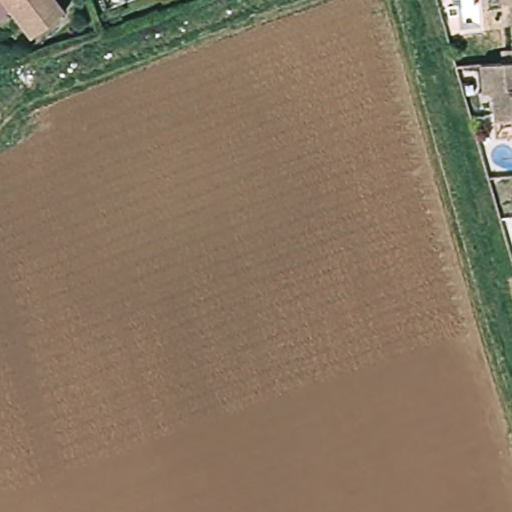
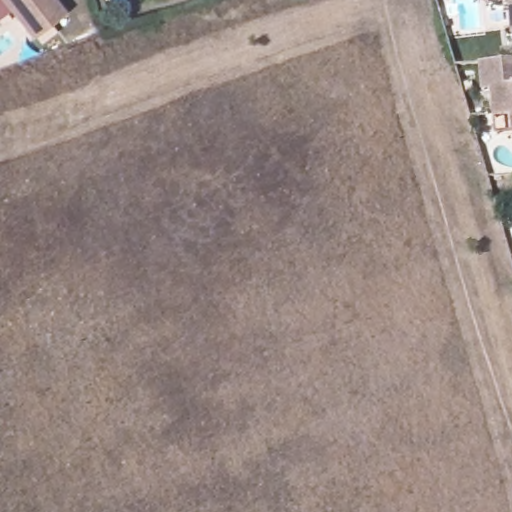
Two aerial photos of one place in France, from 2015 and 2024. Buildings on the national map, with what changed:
unchanged [(68,15),(31,42),(0,0),(56,0),(68,15)]
unchanged [(493,3),(493,0),(512,0),(512,2),(493,3)]
unchanged [(494,123),(494,115),(493,96),(483,95),(480,68),(512,65),(512,123),(494,123)]

